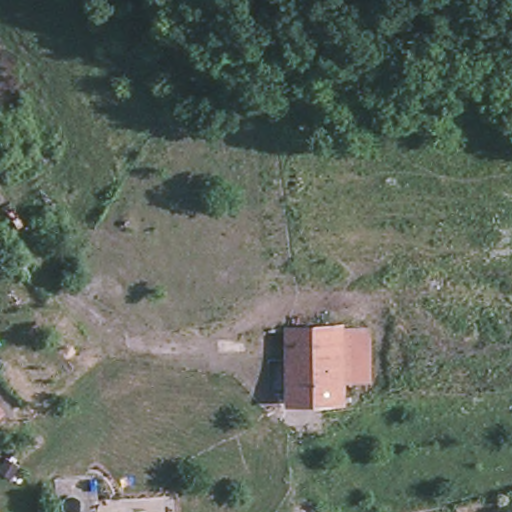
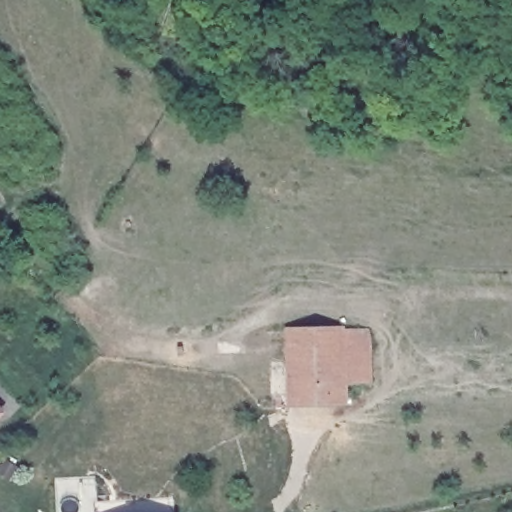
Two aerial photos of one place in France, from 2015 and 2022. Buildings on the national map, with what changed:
unchanged [(285,340),(365,331),(372,386),(348,387),(293,392),(290,392),(285,340)]
unchanged [(350,406),(292,412),(290,392),(293,392),(348,387),(350,406)]
unchanged [(8,458),(20,466),(12,477),(1,471),(8,458)]

